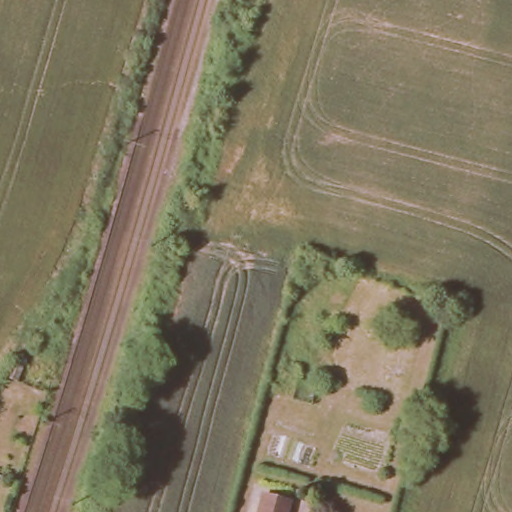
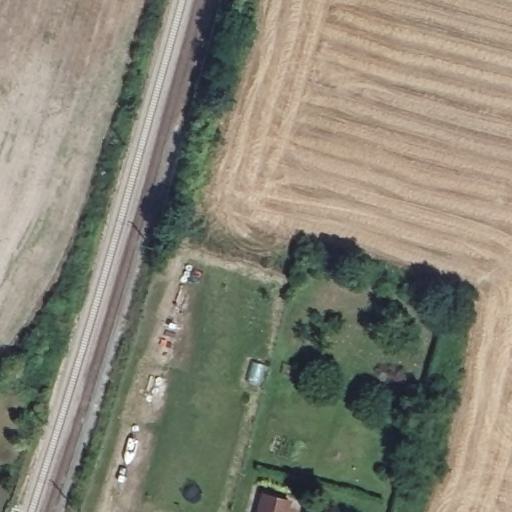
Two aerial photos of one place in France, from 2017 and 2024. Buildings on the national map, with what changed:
unchanged [(25,359),(17,381),(5,377),(15,355),(25,359)]
unchanged [(270,494),(277,495),(272,512),(251,512),(257,485),(271,487),(270,494)]

